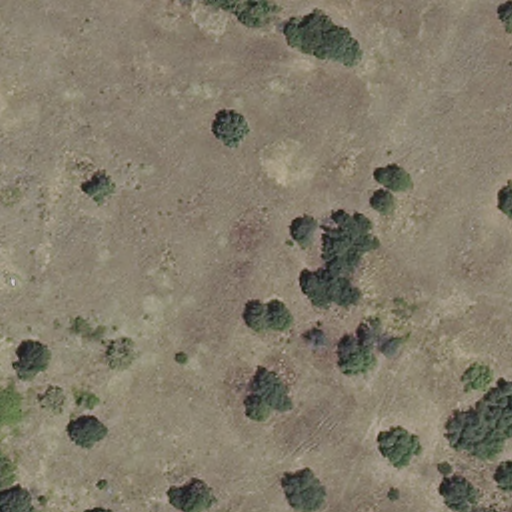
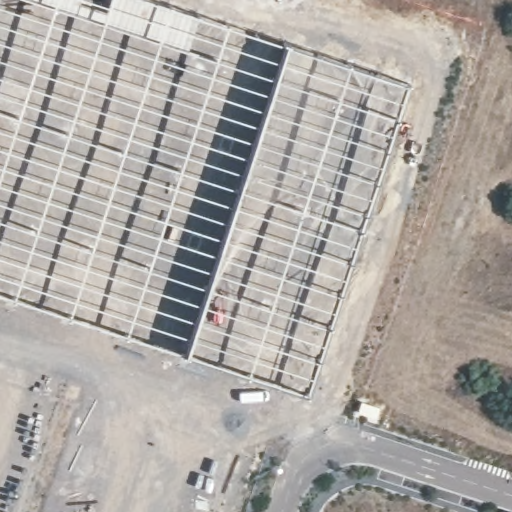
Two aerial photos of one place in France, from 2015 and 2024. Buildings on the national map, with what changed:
new [(0,0),(156,0),(284,42),(222,240),(183,355),(0,295),(0,0)]
new [(222,240),(284,42),(351,62),(412,84),(376,185),(328,335),(307,396),(226,372),(183,355),(222,240)]

